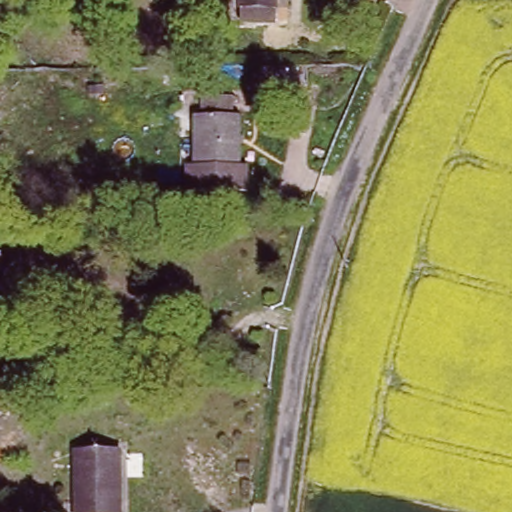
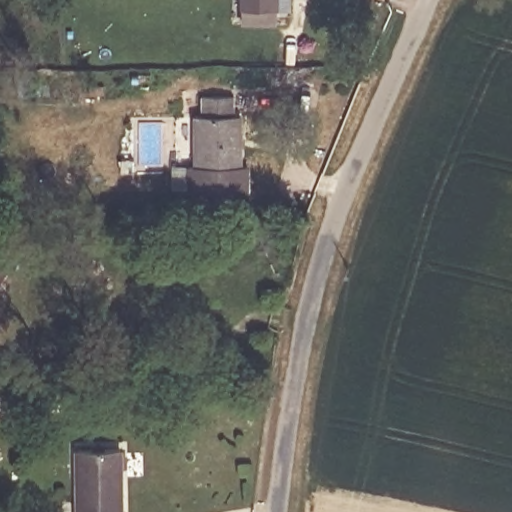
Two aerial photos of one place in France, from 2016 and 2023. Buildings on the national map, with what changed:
unchanged [(272,0),(272,22),(237,21),(238,0),(272,0)]
unchanged [(240,187),(245,187),(245,208),(188,208),(188,186),(195,186),(195,136),(207,136),(207,118),(236,118),(235,136),(241,136),(240,187)]
unchanged [(12,265),(0,282),(0,256),(12,265)]
unchanged [(72,508),(73,441),(113,441),(114,509),(114,512),(72,512),(72,508)]

